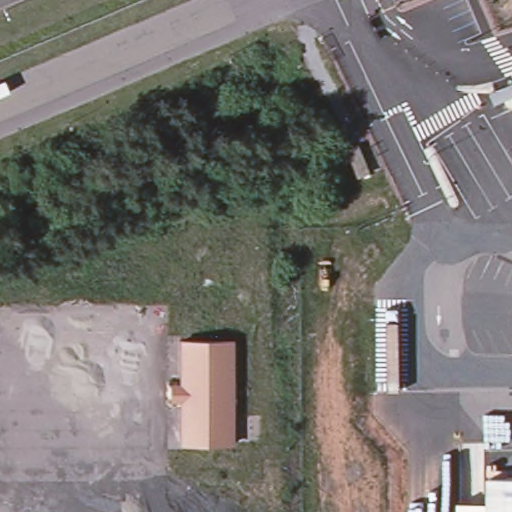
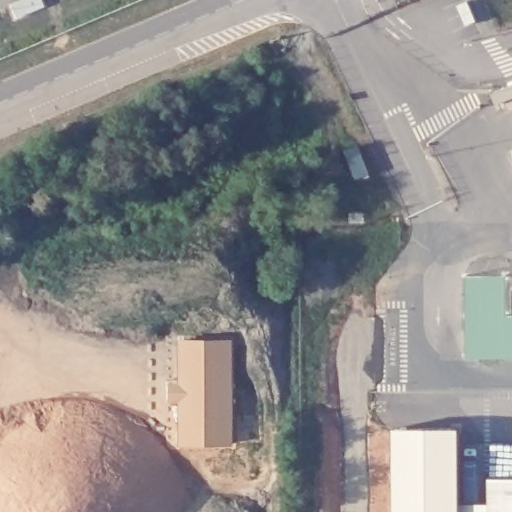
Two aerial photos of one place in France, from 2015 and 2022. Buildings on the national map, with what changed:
new [(512,83),(512,98),(495,105),(490,92),(512,83)]
unchanged [(172,335),(223,336),(223,437),(172,437),(172,394),(172,379),(172,335)]
new [(457,431),(457,512),(390,512),(390,431),(457,431)]
unchanged [(512,479),(512,512),(483,512),(482,477),(512,479)]

